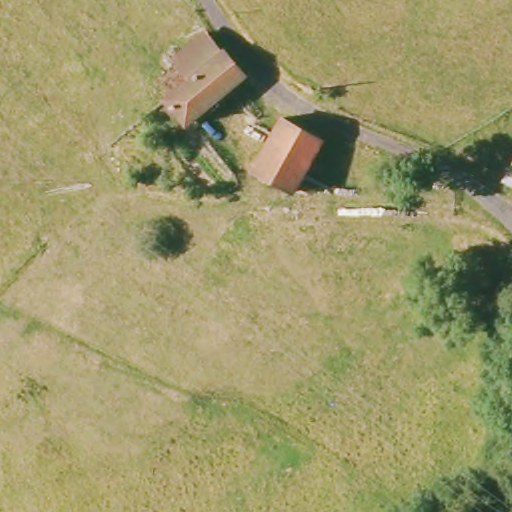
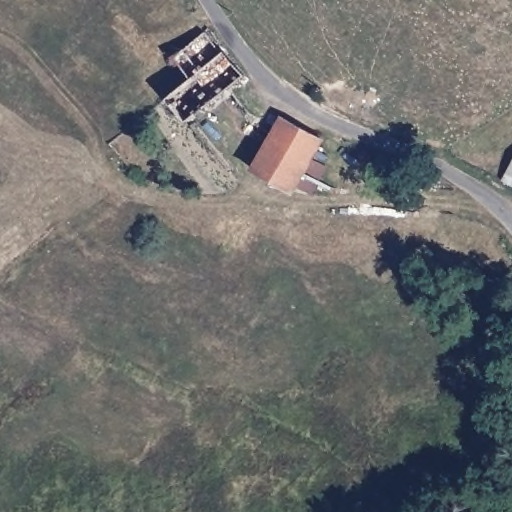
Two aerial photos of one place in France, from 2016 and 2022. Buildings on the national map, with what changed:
unchanged [(188,126),(166,98),(188,79),(174,60),(203,34),(219,53),(223,51),(246,78),(188,126)]
unchanged [(308,155),(321,163),(305,190),(293,181),(288,188),(248,166),(276,113),(319,135),(308,155)]
unchanged [(512,166),(512,186),(503,181),(512,166)]

